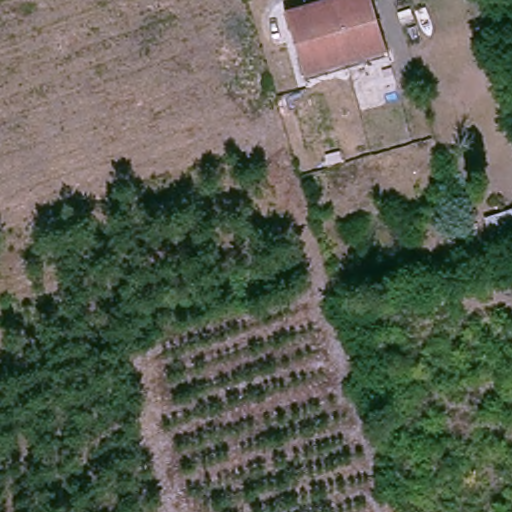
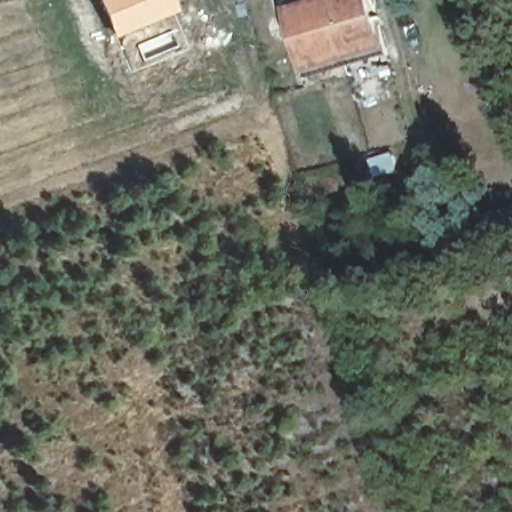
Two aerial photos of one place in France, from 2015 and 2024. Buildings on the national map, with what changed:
new [(177,11),(113,37),(98,0),(173,0),(177,11)]
unchanged [(316,57),(299,1),(302,0),(374,0),(385,39),(316,57)]
unchanged [(358,59),(310,72),(307,61),(316,57),(385,39),(393,36),(397,44),(358,59)]
unchanged [(506,245),(499,228),(505,225),(501,214),(512,211),(512,243),(506,245)]

